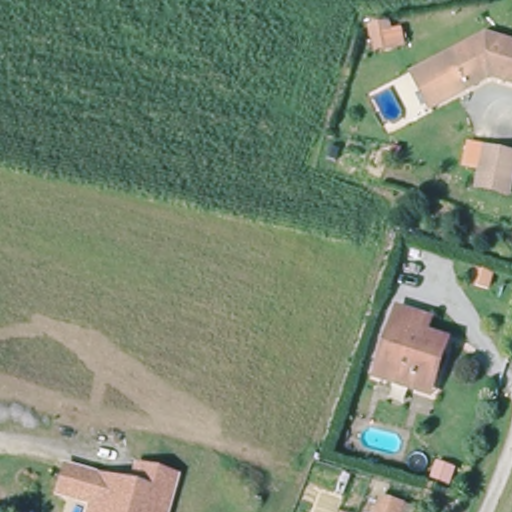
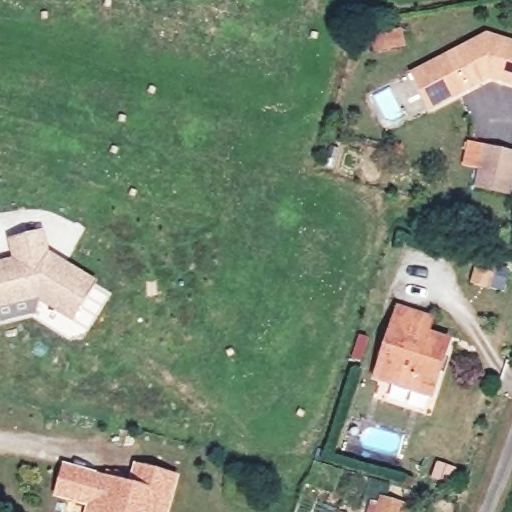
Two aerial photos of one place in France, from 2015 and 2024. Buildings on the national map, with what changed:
unchanged [(391,23),(394,50),(379,50),(376,24),(391,23)]
unchanged [(428,71),(469,35),(480,29),(512,40),(512,75),(498,72),(497,65),(482,64),(483,73),(452,97),(440,108),(417,80),(428,71)]
unchanged [(484,172),(490,144),(512,149),(512,180),(510,189),(482,182),(484,172)]
new [(45,230),(51,251),(99,281),(74,322),(41,301),(37,302),(39,312),(1,321),(0,320),(0,260),(12,257),(9,239),(45,230)]
unchanged [(400,376),(377,368),(397,299),(419,305),(436,310),(430,329),(455,337),(444,373),(439,388),(400,376)]
unchanged [(458,454),(454,471),(434,464),(439,447),(458,454)]
unchanged [(178,477),(166,512),(93,512),(97,500),(62,488),(70,466),(103,476),(137,487),(141,466),(178,477)]
unchanged [(408,512),(386,512),(392,498),(411,505),(408,512)]

